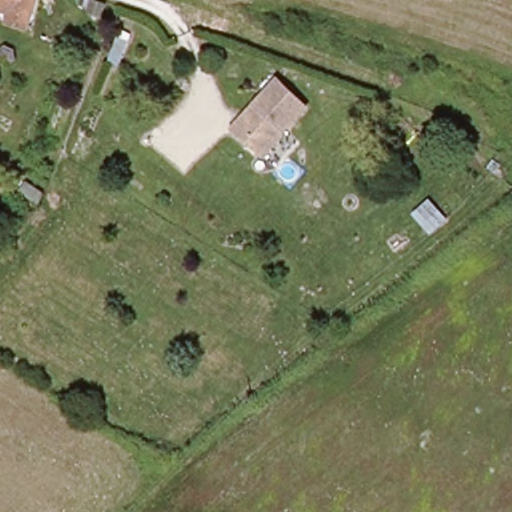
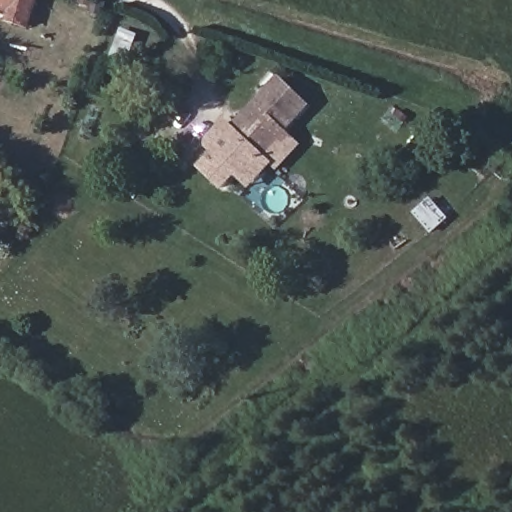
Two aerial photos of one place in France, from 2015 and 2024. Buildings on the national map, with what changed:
unchanged [(0,0),(38,0),(32,22),(13,16),(14,10),(0,6),(0,0)]
unchanged [(230,126),(277,75),(305,101),(281,127),(283,129),(262,155),(230,126)]
new [(250,190),(237,178),(223,192),(198,169),(211,154),(206,148),(205,141),(225,121),(230,126),(262,155),(274,166),(250,190)]

